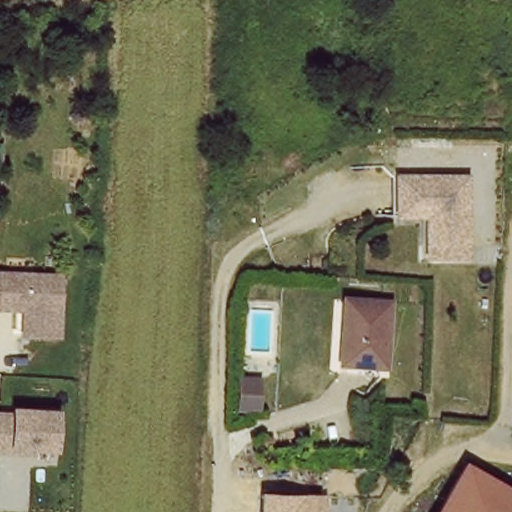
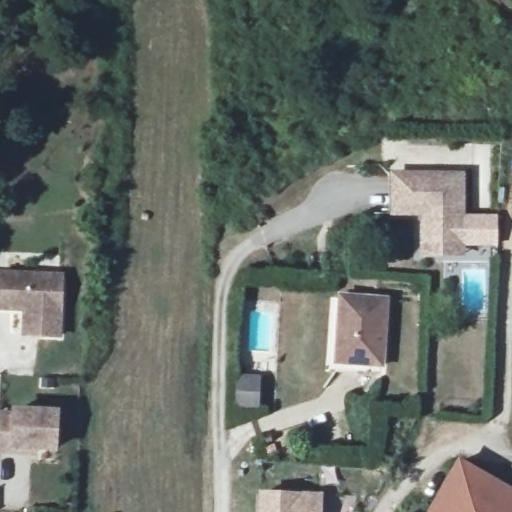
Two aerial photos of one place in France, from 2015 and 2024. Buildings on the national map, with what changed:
unchanged [(462,258),(425,258),(425,218),(395,218),(395,180),(463,180),(462,258)]
unchanged [(65,336),(31,335),(32,310),(6,308),(6,305),(0,304),(0,276),(7,276),(8,274),(67,276),(65,336)]
unchanged [(343,366),(343,356),(348,293),(390,296),(387,360),(385,370),(343,366)]
unchanged [(264,410),(237,410),(238,375),(265,375),(264,410)]
unchanged [(19,457),(1,456),(3,421),(20,421),(21,416),(62,419),(60,455),(40,453),(39,458),(19,457)]
unchanged [(467,461),(500,480),(482,512),(437,512),(444,500),(461,471),(467,461)]
unchanged [(500,480),(512,487),(512,512),(482,512),(500,480)]
unchanged [(261,491),(326,493),(325,512),(260,512),(261,491)]

